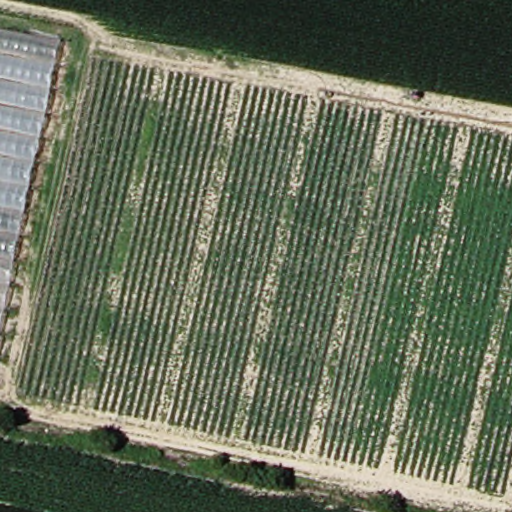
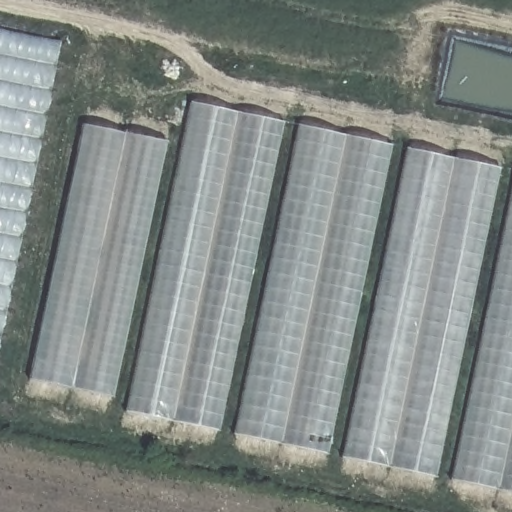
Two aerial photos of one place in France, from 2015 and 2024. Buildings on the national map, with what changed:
unchanged [(0,347),(0,26),(63,39),(0,347)]
new [(193,101),(281,122),(220,428),(128,408),(193,101)]
new [(166,142),(114,395),(30,377),(83,126),(166,142)]
new [(389,144),(325,451),(238,433),(303,128),(389,144)]
new [(350,458),(415,150),(497,168),(431,475),(350,458)]
new [(512,214),(512,491),(455,478),(512,214)]

